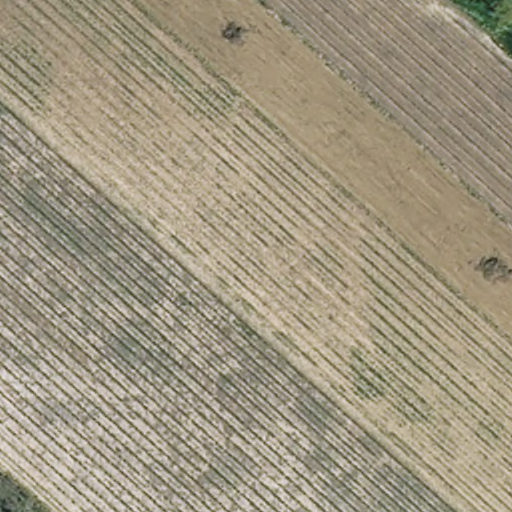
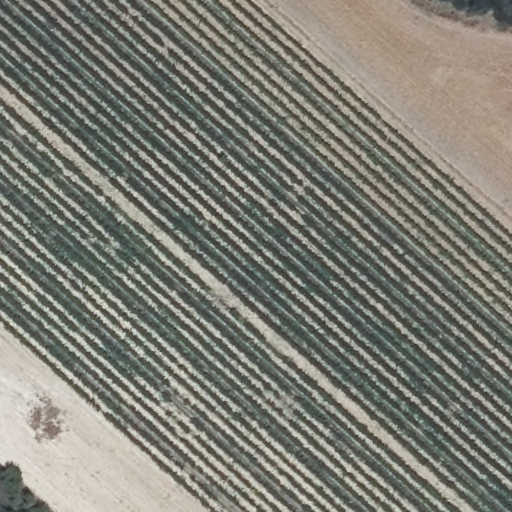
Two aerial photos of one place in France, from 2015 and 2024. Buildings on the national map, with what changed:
[]

